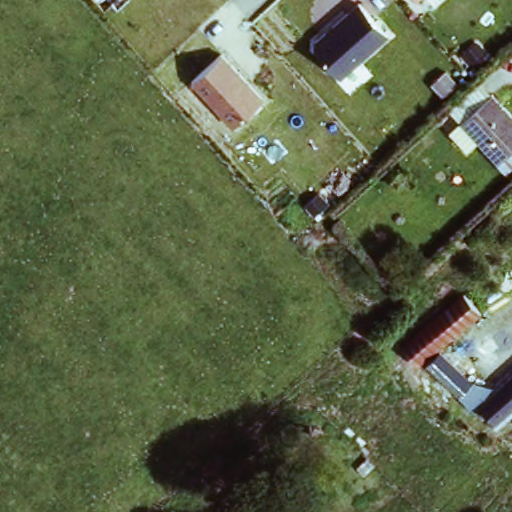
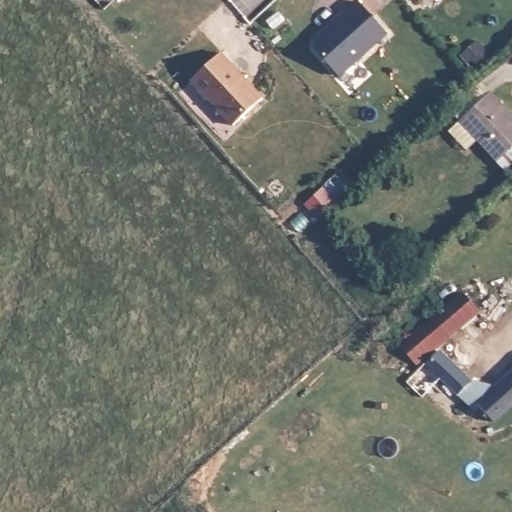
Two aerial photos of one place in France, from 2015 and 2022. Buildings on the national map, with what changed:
unchanged [(387,33),(339,74),(314,47),(313,37),(355,0),(387,33)]
unchanged [(414,1),(413,0),(416,0),(414,1)]
unchanged [(265,100),(232,129),(190,78),(222,49),(265,100)]
unchanged [(464,119),(454,109),(484,81),(495,93),(512,112),(512,146),(500,158),(485,142),(470,154),(450,133),(464,119)]
unchanged [(400,344),(463,290),(477,306),(435,344),(416,363),(400,344)]
unchanged [(473,408),(425,361),(437,347),(470,378),(467,384),(482,399),(479,403),(473,408)]
unchanged [(482,399),(512,373),(512,403),(493,419),(479,403),(482,399)]

